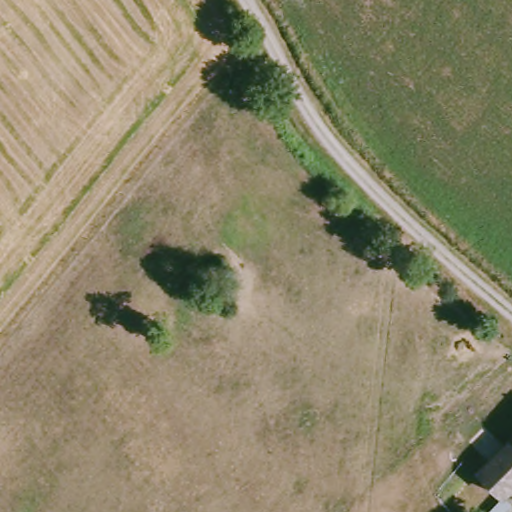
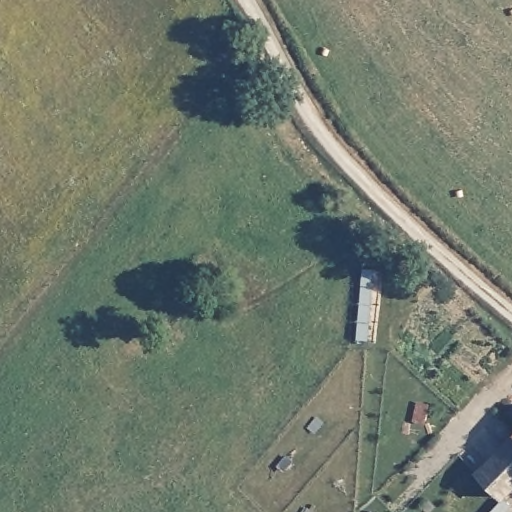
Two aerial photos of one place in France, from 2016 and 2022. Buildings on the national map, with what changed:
unchanged [(502,495),(479,473),(512,439),(512,485),(502,495)]

